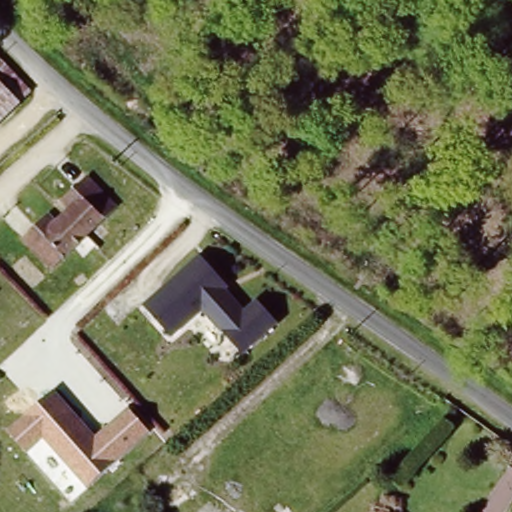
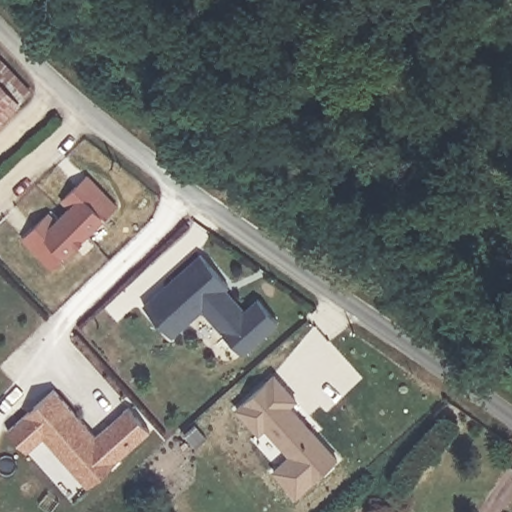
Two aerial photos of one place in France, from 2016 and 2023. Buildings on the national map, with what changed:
unchanged [(0,124),(0,87),(19,107),(0,124)]
unchanged [(48,270),(20,238),(43,215),(52,225),(65,212),(57,204),(80,181),(110,214),(48,270)]
unchanged [(245,306),(256,298),(276,320),(242,350),(202,310),(172,336),(144,302),(200,251),(245,306)]
new [(297,406),(346,459),(305,497),(282,472),(298,456),(272,429),(266,435),(243,410),(280,376),(303,401),(297,406)]
unchanged [(95,435),(128,405),(153,432),(85,490),(42,437),(25,454),(5,427),(55,391),(95,435)]

